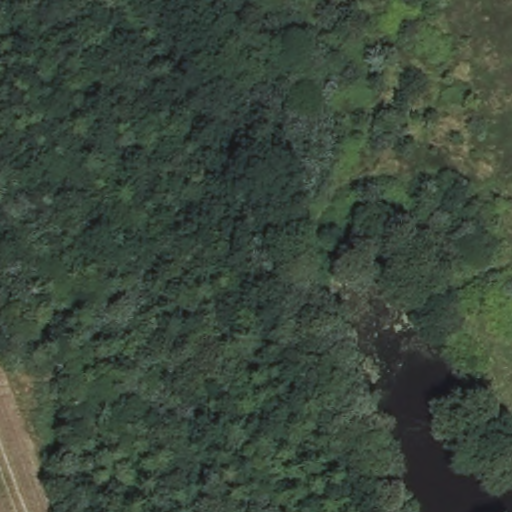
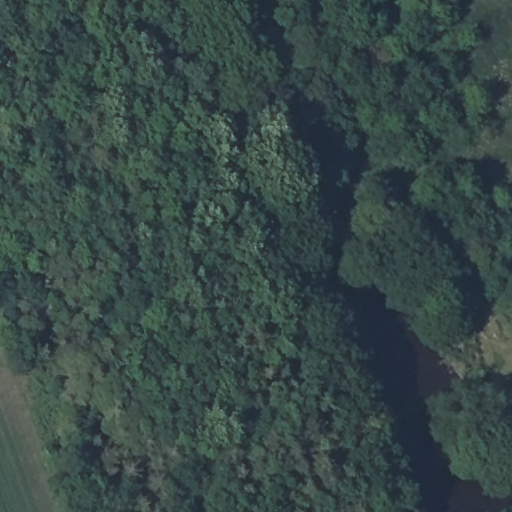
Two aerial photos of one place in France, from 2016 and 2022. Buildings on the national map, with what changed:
unchanged [(463,333),(454,315),(466,309),(484,347),(469,353),(461,335),(463,333)]

